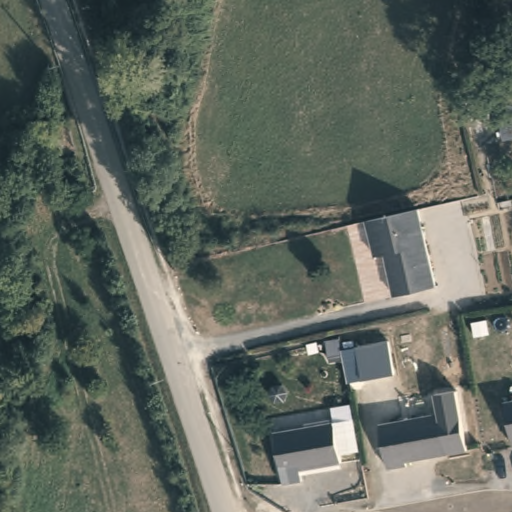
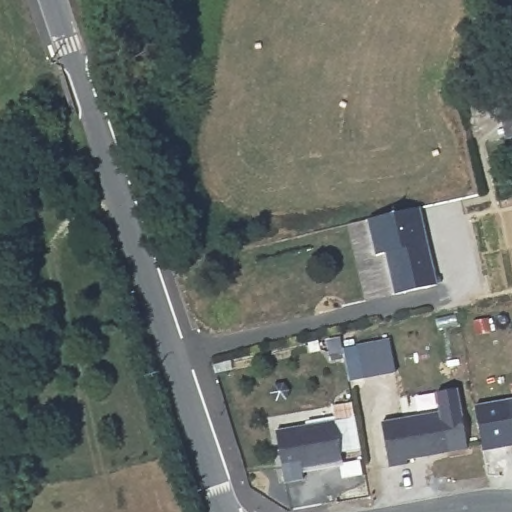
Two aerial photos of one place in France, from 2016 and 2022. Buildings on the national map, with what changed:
unchanged [(512,140),(495,144),(488,105),(512,107),(512,140)]
unchanged [(421,211),(437,285),(394,293),(387,255),(375,257),(368,223),(421,211)]
unchanged [(335,354),(332,339),(345,336),(347,351),(335,354)]
unchanged [(401,370),(369,376),(362,343),(394,337),(401,370)]
unchanged [(512,396),(512,438),(504,398),(512,396)]
unchanged [(445,409),(452,450),(412,457),(413,462),(395,465),(387,420),(445,409)]
unchanged [(347,460),(305,470),(307,478),(289,482),(277,432),(337,420),(347,460)]

